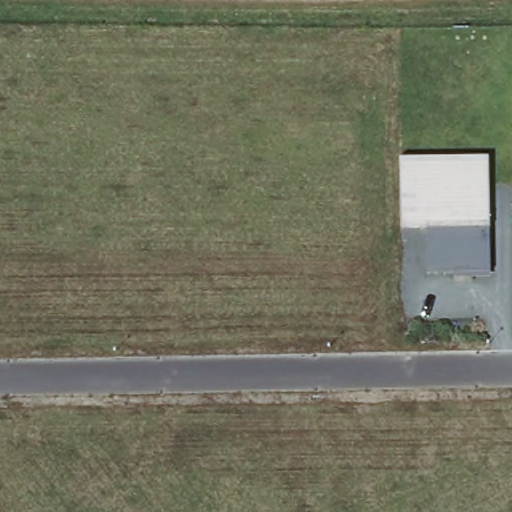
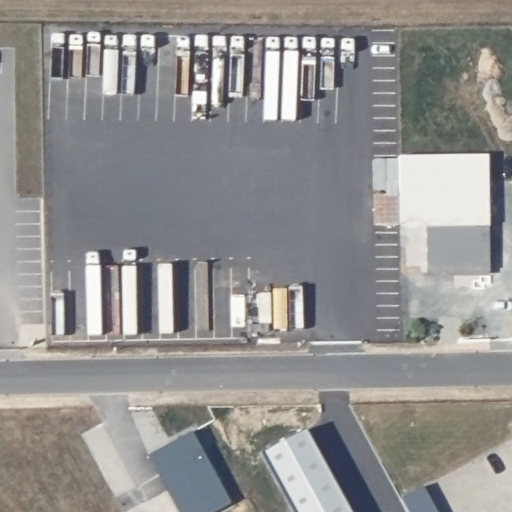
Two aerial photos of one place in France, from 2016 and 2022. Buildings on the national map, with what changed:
unchanged [(490,272),(428,274),(427,227),(402,228),(400,157),(490,155),(490,272)]
new [(400,159),(400,190),(376,190),(375,160),(400,159)]
new [(400,194),(400,224),(376,224),(376,194),(400,194)]
new [(352,512),(294,512),(262,453),(307,429),(352,512)]
new [(231,502),(214,512),(180,512),(149,455),(193,431),(231,502)]
new [(438,512),(409,512),(402,498),(423,486),(438,512)]

